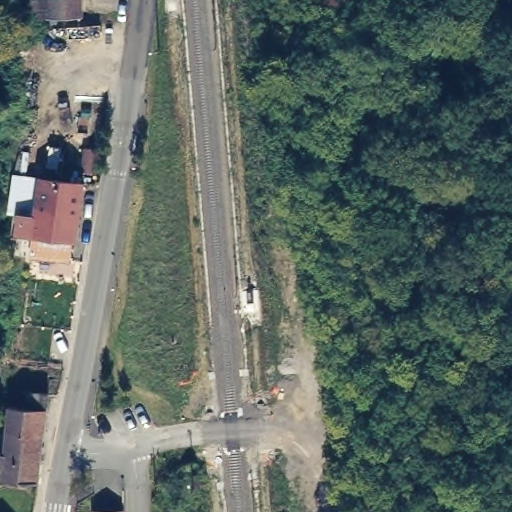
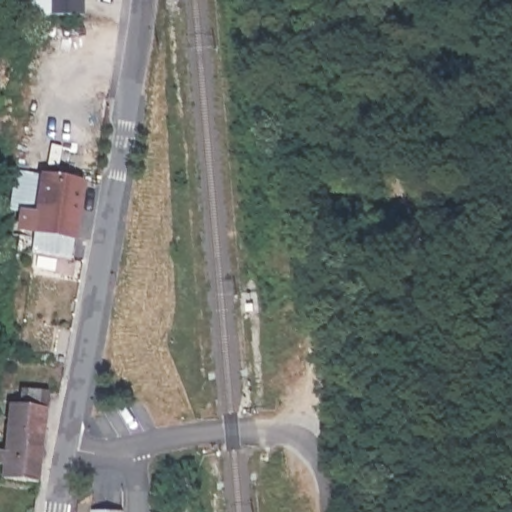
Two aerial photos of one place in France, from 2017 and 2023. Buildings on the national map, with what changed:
unchanged [(33,14),(34,0),(86,0),(86,13),(33,14)]
unchanged [(35,217),(39,186),(12,183),(2,182),(5,151),(15,152),(42,155),(67,158),(64,183),(82,185),(75,241),(17,233),(19,215),(35,217)]
unchanged [(7,470),(15,395),(25,396),(27,381),(52,384),(50,399),(42,473),(7,470)]

